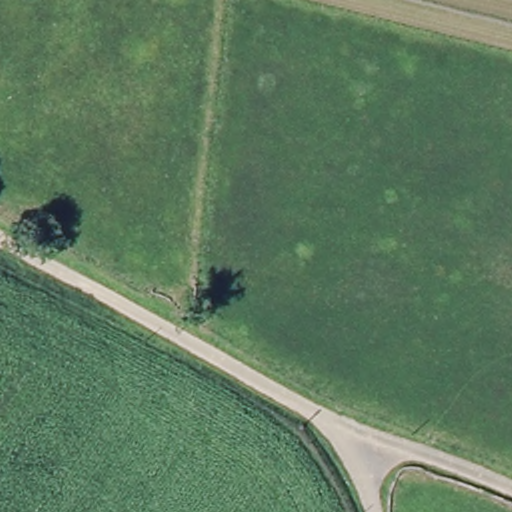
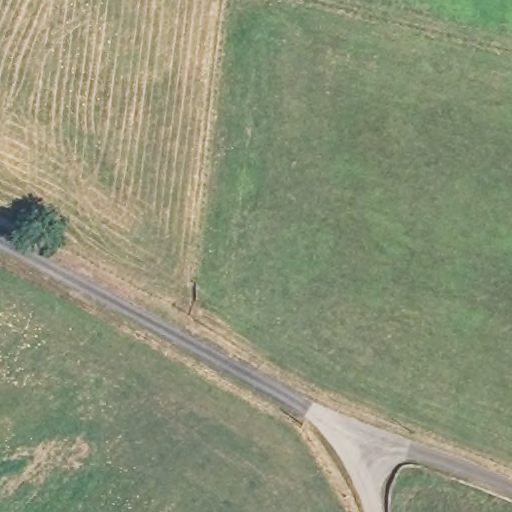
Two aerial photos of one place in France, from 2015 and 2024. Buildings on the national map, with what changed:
[]

